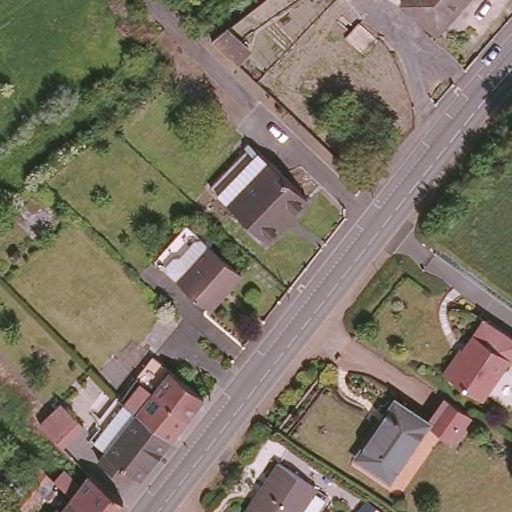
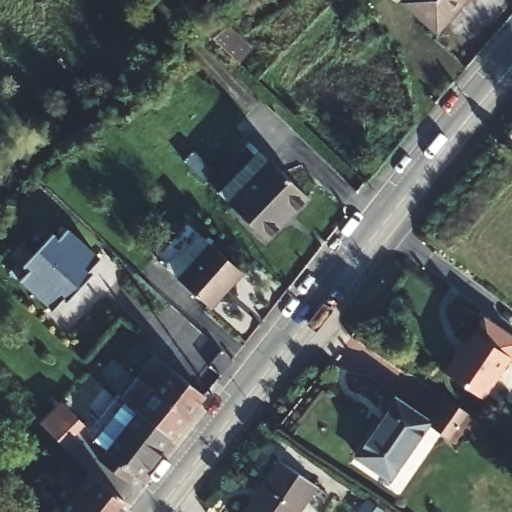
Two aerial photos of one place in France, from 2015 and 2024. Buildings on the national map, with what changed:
unchanged [(430,32),(399,2),(400,0),(458,0),(430,32)]
unchanged [(247,56),(237,66),(212,44),(224,35),(247,56)]
unchanged [(367,57),(355,70),(335,52),(347,39),(367,57)]
unchanged [(272,159),(309,195),(266,240),(224,204),(272,159)]
new [(87,270),(92,272),(66,301),(62,297),(51,308),(20,279),(27,270),(22,265),(53,232),(59,237),(68,228),(99,256),(87,270)]
unchanged [(244,275),(212,309),(201,299),(166,269),(177,258),(170,252),(184,238),(190,244),(199,233),(230,261),(234,265),(244,275)]
unchanged [(512,330),(512,356),(482,395),(442,366),(455,350),(466,347),(490,315),(512,330)]
unchanged [(145,382),(161,362),(212,403),(195,423),(162,395),(145,382)]
unchanged [(179,445),(145,416),(132,406),(128,402),(145,382),(162,395),(195,423),(179,445)]
unchanged [(443,391),(470,410),(449,437),(426,420),(424,419),(426,416),(443,391)]
unchanged [(424,419),(426,420),(391,470),(359,447),(364,440),(367,441),(399,396),(426,416),(424,419)]
unchanged [(54,411),(60,405),(84,426),(63,448),(56,441),(40,426),(54,411)]
unchanged [(179,445),(149,483),(142,478),(134,488),(105,465),(114,454),(102,445),(132,406),(145,416),(179,445)]
unchanged [(294,512),(238,512),(257,488),(261,491),(276,472),(272,469),(281,460),(315,486),(294,512)]
unchanged [(56,482),(50,488),(46,485),(24,512),(14,512),(11,510),(42,470),(54,480),(64,471),(80,487),(91,473),(127,501),(118,512),(61,512),(72,498),(56,482)]

